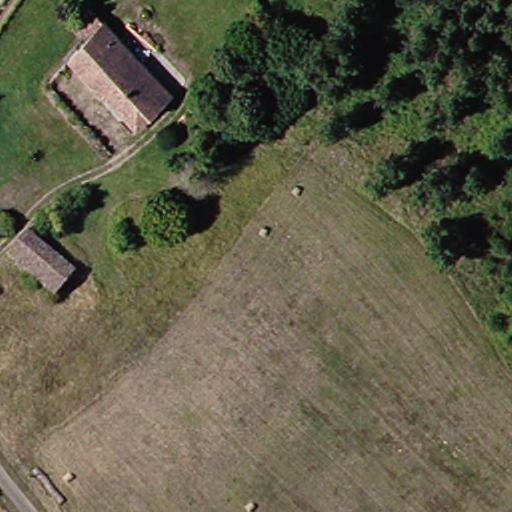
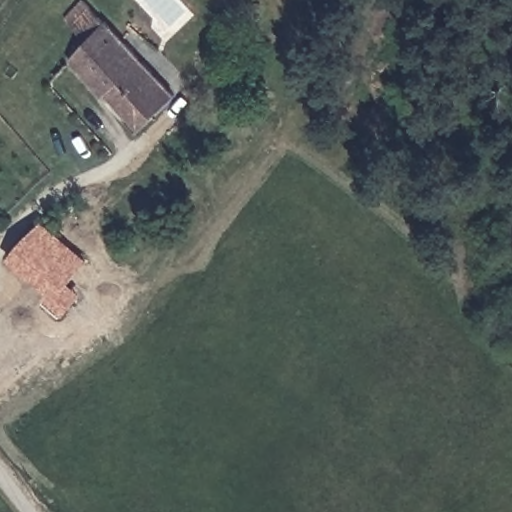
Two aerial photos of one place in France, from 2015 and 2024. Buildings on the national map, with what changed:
unchanged [(111,90),(100,102),(96,98),(62,68),(89,39),(71,24),(90,6),(104,21),(106,18),(178,85),(156,108),(152,113),(145,121),(111,90)]
unchanged [(79,271),(63,292),(16,258),(31,236),(79,271)]

